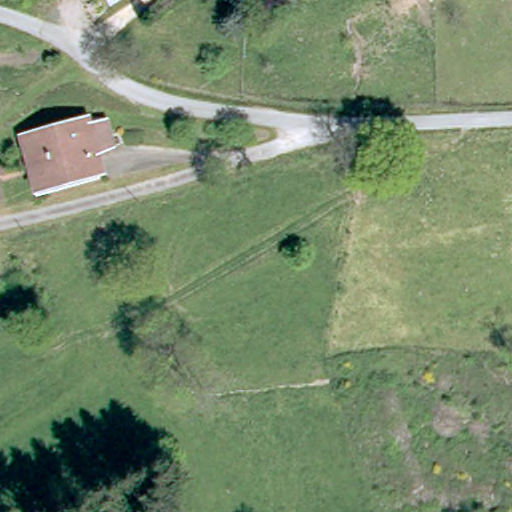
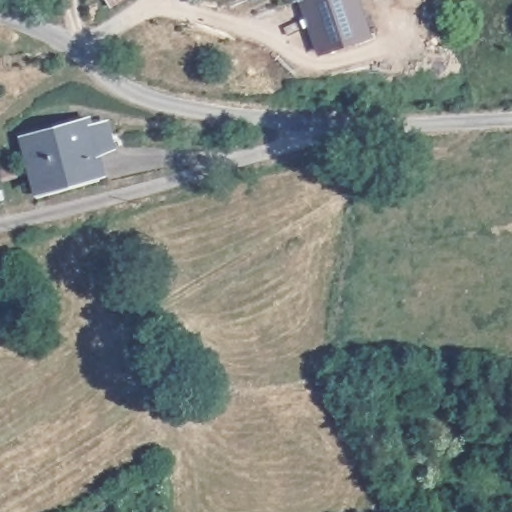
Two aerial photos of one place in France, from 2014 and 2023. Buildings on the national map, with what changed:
new [(374,35),(319,55),(299,0),(360,0),(374,35)]
unchanged [(6,185),(2,175),(31,165),(35,164),(27,143),(98,116),(109,112),(113,120),(124,142),(105,151),(108,157),(39,176),(38,172),(7,185),(6,185)]
unchanged [(113,169),(46,194),(39,176),(108,157),(113,169)]

